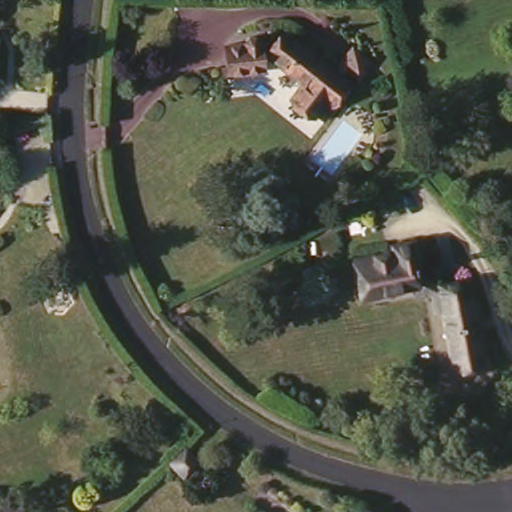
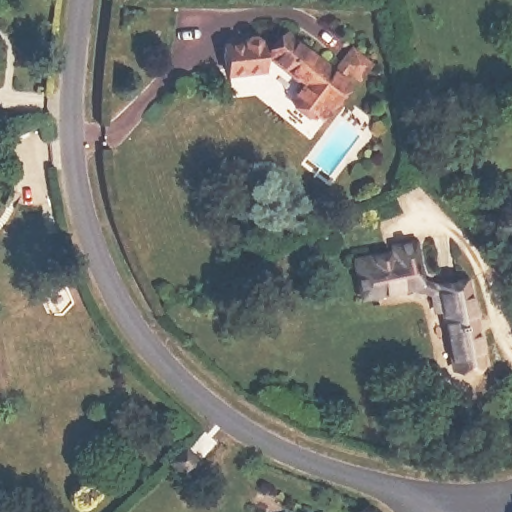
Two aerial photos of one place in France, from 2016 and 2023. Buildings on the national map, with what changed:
unchanged [(347,84),(352,89),(331,115),(298,92),(306,80),(270,53),(270,65),(236,69),(232,37),(250,34),(249,28),(264,25),(266,33),(285,40),(291,30),(337,64),(355,38),(375,52),(364,67),(355,61),(346,71),(353,76),(347,84)]
unchanged [(444,290),(469,286),(482,366),(455,370),(446,315),(437,316),(434,301),(416,292),(359,300),(351,266),(350,259),(394,249),(392,243),(415,238),(417,254),(422,280),(444,290)]
unchanged [(195,435),(204,445),(194,455),(184,444),(195,435)]

